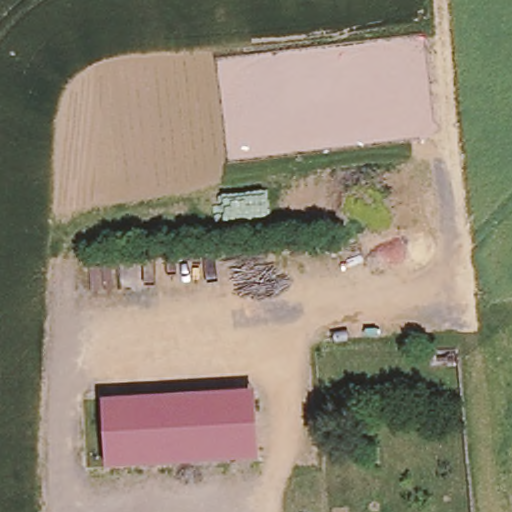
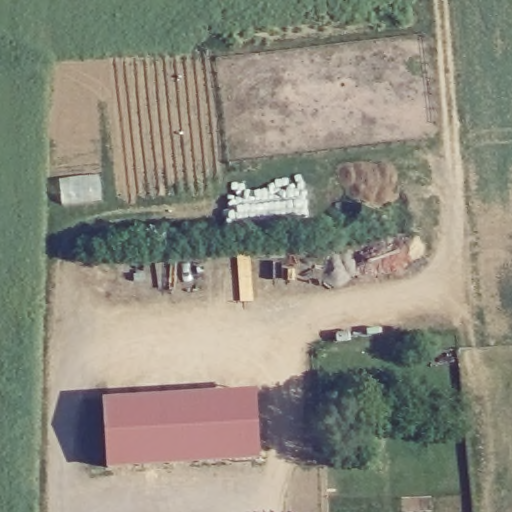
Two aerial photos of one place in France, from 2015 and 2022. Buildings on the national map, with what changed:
unchanged [(109,466),(102,392),(249,381),(257,457),(109,466)]

